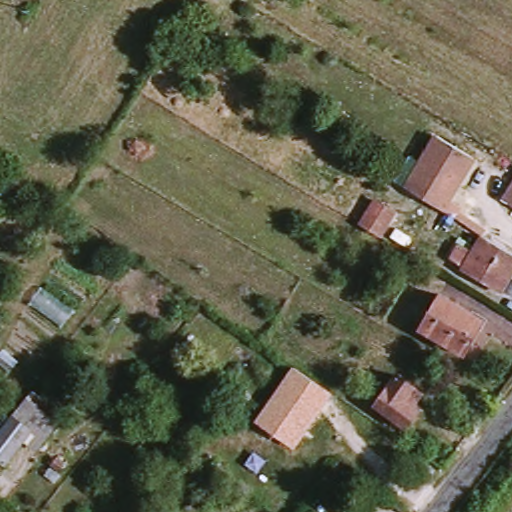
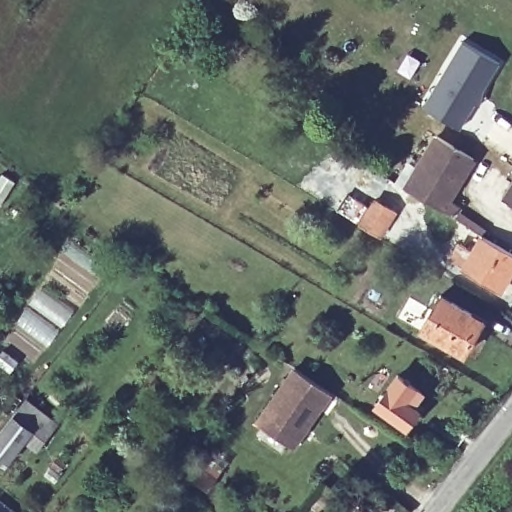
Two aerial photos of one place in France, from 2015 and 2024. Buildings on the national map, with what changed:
new [(462,40),(501,62),(481,96),(458,130),(421,106),(462,40)]
unchanged [(412,188),(443,137),(478,159),(447,210),(412,188)]
unchanged [(512,179),(512,204),(501,198),(512,179)]
unchanged [(367,228),(379,207),(396,219),(384,238),(367,228)]
unchanged [(512,284),(506,293),(467,271),(488,235),(510,248),(512,249),(512,284)]
unchanged [(492,318),(471,353),(428,326),(448,293),(492,318)]
unchanged [(314,347),(306,360),(293,351),(301,338),(314,347)]
unchanged [(295,447),(255,422),(292,366),(332,392),(295,447)]
unchanged [(420,384),(411,396),(424,406),(411,425),(381,402),(404,372),(420,384)]
unchanged [(45,453),(31,442),(13,466),(0,457),(0,438),(29,398),(66,422),(45,453)]

